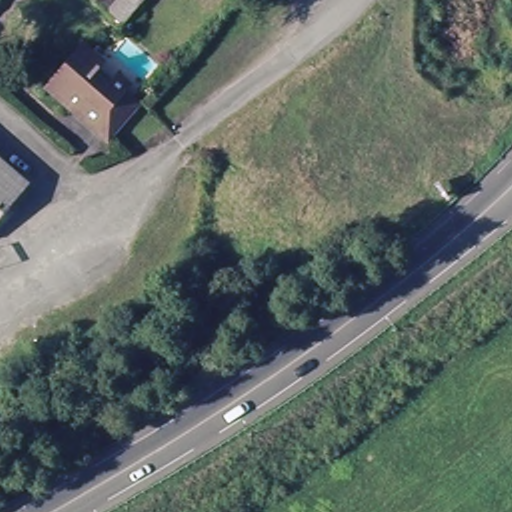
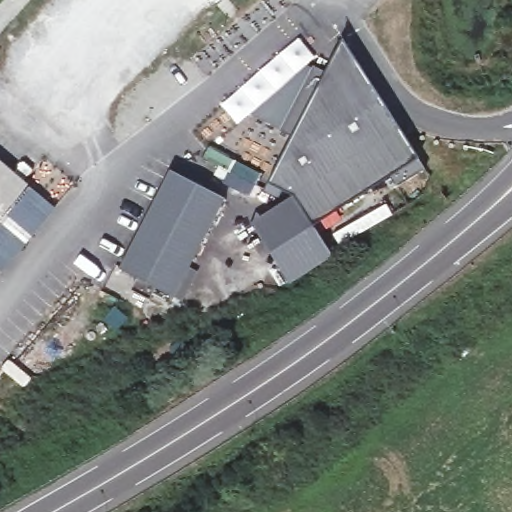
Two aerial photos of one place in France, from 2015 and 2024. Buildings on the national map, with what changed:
demolished [(122,24),(95,0),(143,0),(122,24)]
new [(281,131),(314,66),(322,70),(340,37),(417,157),(416,157),(423,169),(396,187),(388,175),(310,226),(291,196),(280,189),(276,196),(262,188),(289,135),(281,131)]
demolished [(43,96),(78,55),(100,74),(91,85),(103,95),(113,84),(128,96),(122,104),(138,117),(108,152),(43,96)]
new [(281,131),(284,132),(264,169),(231,152),(251,113),(306,63),(314,66),(281,131)]
unchanged [(30,191),(0,226),(0,164),(30,191)]
new [(168,169),(223,197),(172,296),(117,268),(168,169)]
new [(291,196),(310,226),(329,256),(287,282),(249,222),(291,196)]

